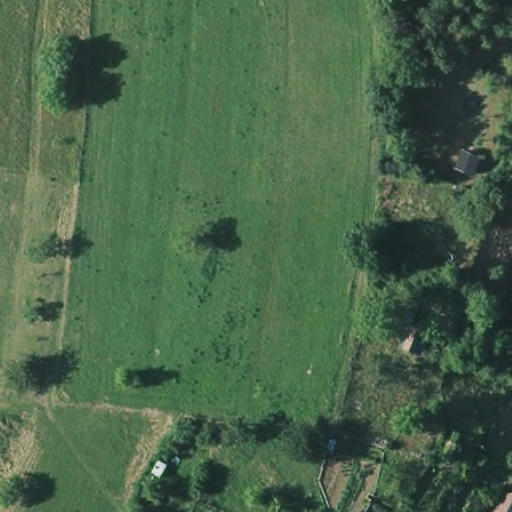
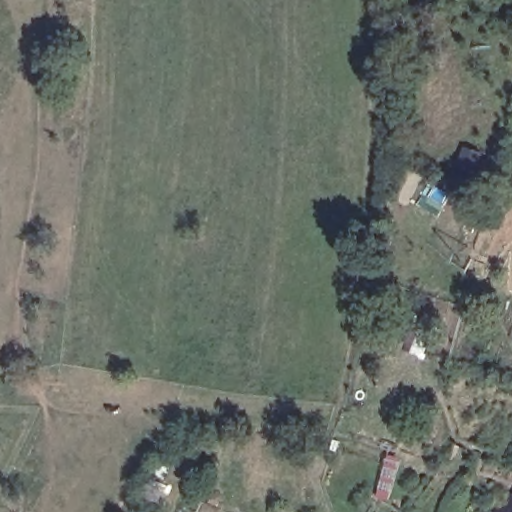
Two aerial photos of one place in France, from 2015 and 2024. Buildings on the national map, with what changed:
unchanged [(405,357),(412,330),(429,334),(424,358),(405,357)]
unchanged [(511,512),(512,510),(512,512),(511,512)]

